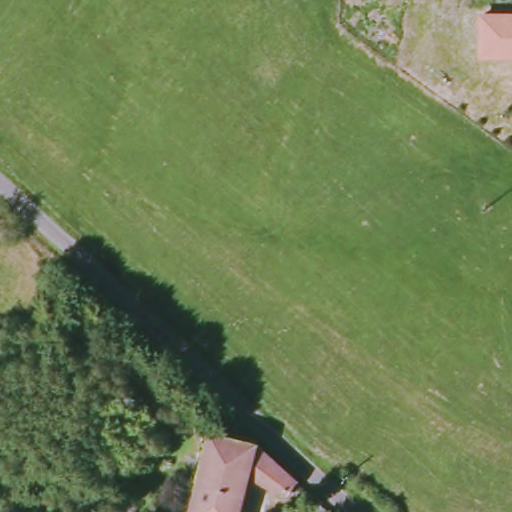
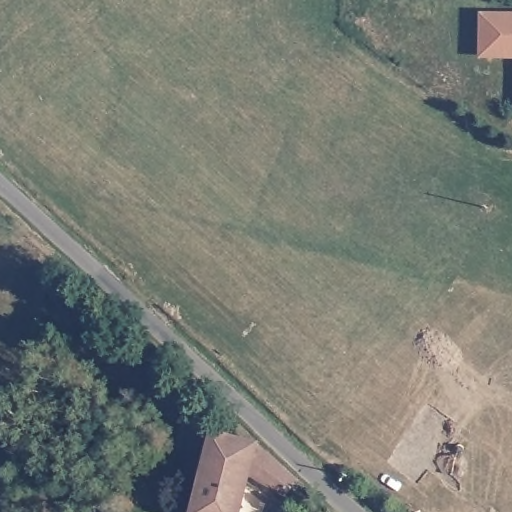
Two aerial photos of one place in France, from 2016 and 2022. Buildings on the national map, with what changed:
unchanged [(479,11),(512,11),(512,60),(479,59),(479,11)]
unchanged [(291,477),(278,491),(242,467),(230,512),(187,512),(207,431),(246,443),(291,477)]

